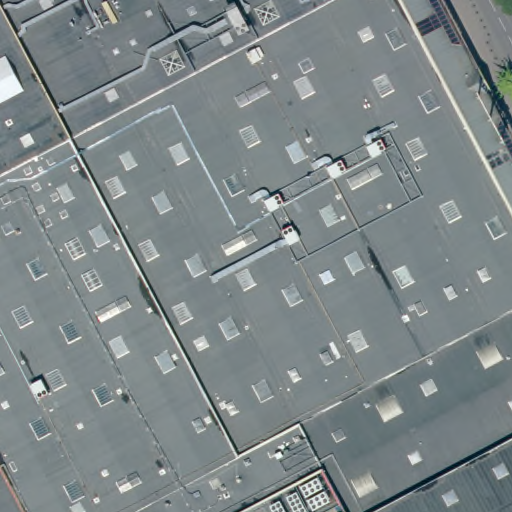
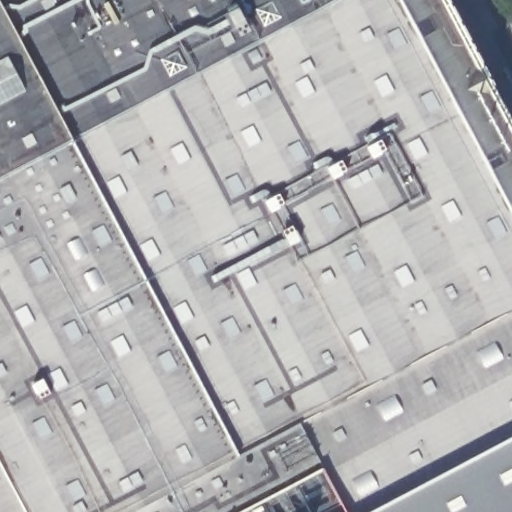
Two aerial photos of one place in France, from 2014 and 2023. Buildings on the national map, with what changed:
unchanged [(512,114),(512,512),(353,512),(346,496),(327,462),(231,512),(0,512),(0,0),(452,0),(512,114)]
unchanged [(346,496),(315,512),(231,512),(327,462),(346,496)]

